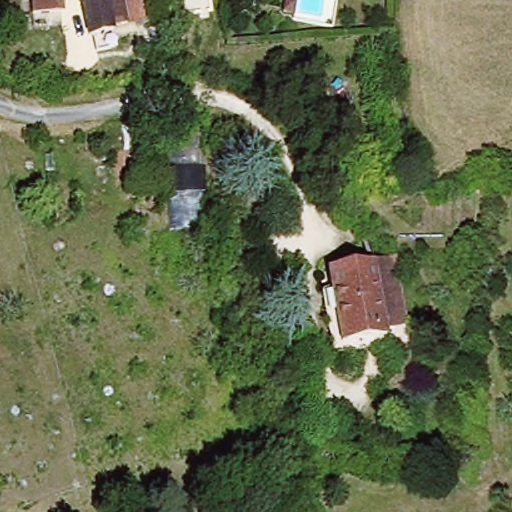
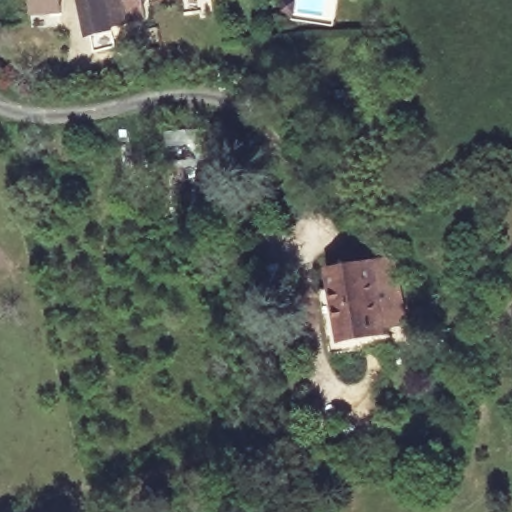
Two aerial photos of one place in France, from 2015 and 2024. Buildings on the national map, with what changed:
unchanged [(66,8),(37,10),(37,0),(65,0),(66,8)]
unchanged [(95,31),(92,29),(87,0),(147,0),(150,13),(135,15),(130,18),(117,20),(118,24),(121,39),(101,44),(98,31),(95,31)]
unchanged [(205,128),(207,237),(167,236),(163,128),(205,128)]
unchanged [(332,260),(378,253),(379,255),(401,251),(412,316),(391,320),(392,328),(345,338),(336,281),(332,260)]
unchanged [(392,328),(392,338),(336,348),(326,284),(336,281),(345,338),(392,328)]

